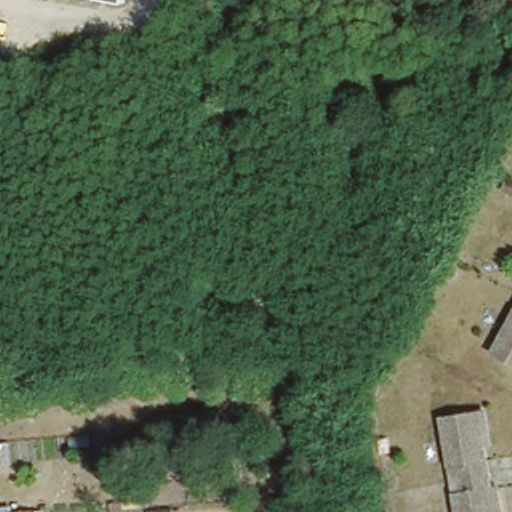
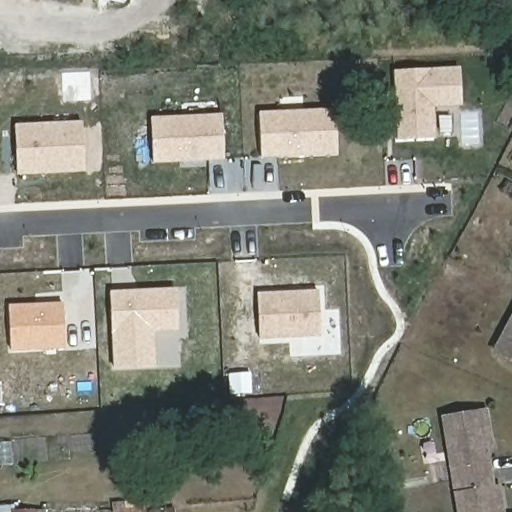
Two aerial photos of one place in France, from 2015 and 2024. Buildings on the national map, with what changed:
unchanged [(107,0),(120,0),(120,2),(107,0)]
new [(435,140),(397,141),(395,75),(460,72),(462,107),(435,108),(435,140)]
new [(329,110),(330,123),(336,123),(337,155),(262,159),(260,113),(329,110)]
new [(154,165),(151,118),(222,114),(225,161),(154,165)]
new [(17,176),(15,127),(82,123),(85,173),(17,176)]
new [(155,333),(156,362),(152,362),(152,367),(113,369),(110,292),(149,290),(150,292),(166,289),(166,291),(176,289),(179,332),(155,333)]
new [(319,291),(321,336),(259,339),(256,294),(319,291)]
new [(11,351),(9,306),(64,303),(65,348),(11,351)]
unchanged [(493,348),(512,316),(512,359),(493,348)]
unchanged [(493,510),(493,512),(457,512),(452,481),(443,427),(442,418),(485,412),(488,437),(481,439),(488,475),(491,490),(498,489),(502,509),(497,509),(493,510)]
new [(25,508),(42,508),(43,512),(0,512),(0,506),(12,504),(13,510),(25,508)]
unchanged [(174,512),(128,512),(174,509),(174,512)]

